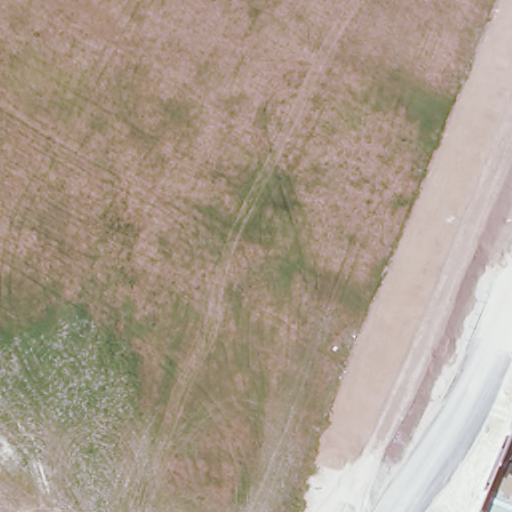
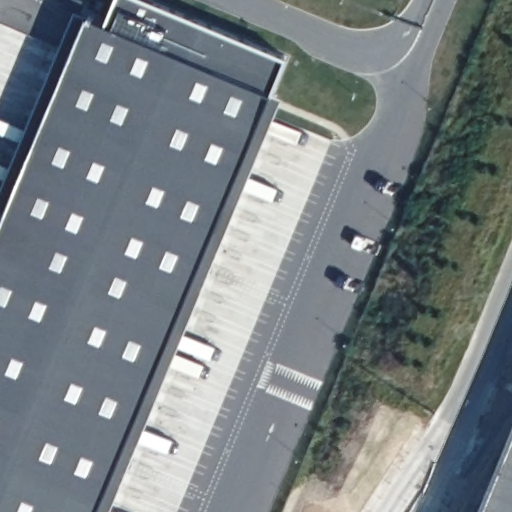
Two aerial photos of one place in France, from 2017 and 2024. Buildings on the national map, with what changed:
new [(117,0),(140,0),(287,62),(103,512),(0,512),(0,234),(86,20),(105,25),(117,0)]
unchanged [(512,462),(512,512),(491,512),(512,462)]

